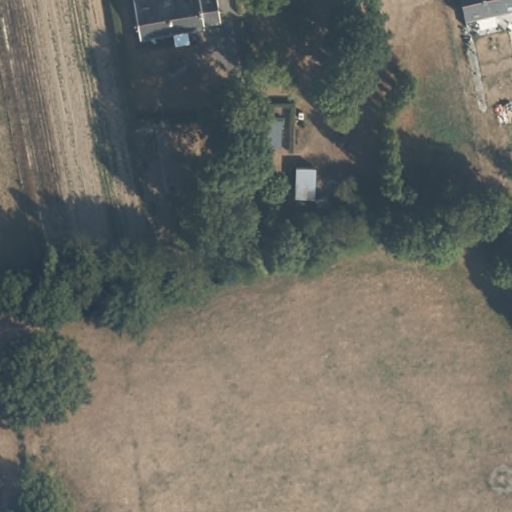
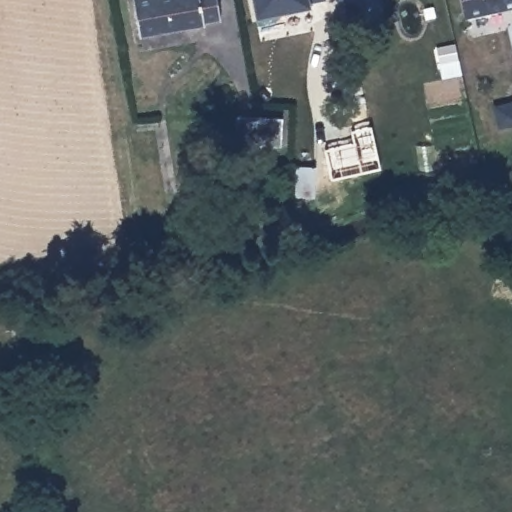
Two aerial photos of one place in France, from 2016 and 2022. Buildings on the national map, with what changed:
unchanged [(202,26),(201,30),(140,38),(133,0),(213,0),(216,24),(202,26)]
new [(310,8),(255,19),(252,0),(326,0),(310,3),(310,8)]
unchanged [(462,0),(512,0),(512,7),(465,16),(462,0)]
unchanged [(280,149),(235,149),(235,141),(236,120),(280,121),(280,134),(280,149)]

